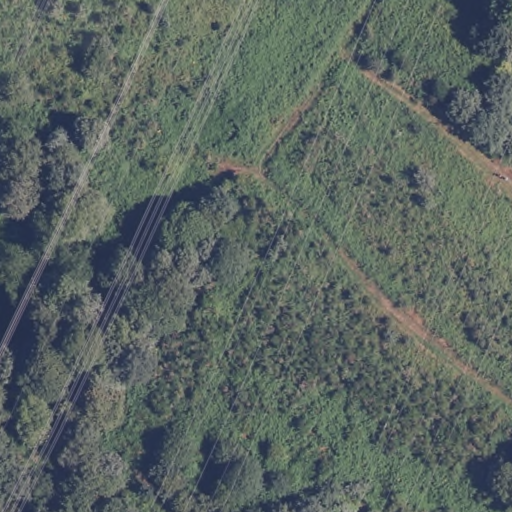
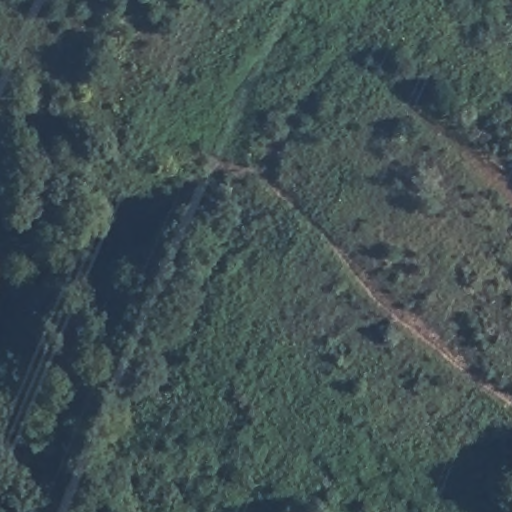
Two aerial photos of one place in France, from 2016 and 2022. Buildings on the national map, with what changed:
unchanged [(92,174),(66,164),(72,147),(98,157),(92,174)]

